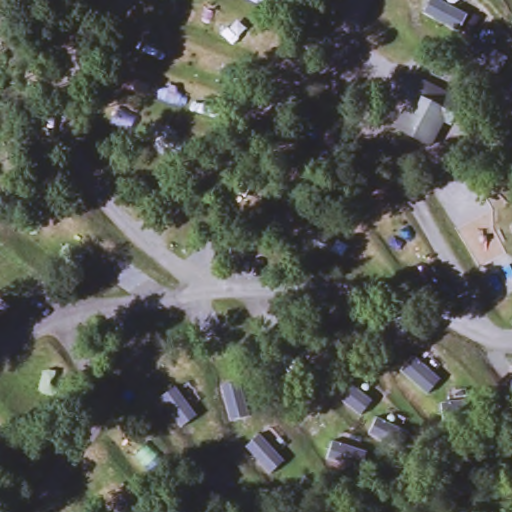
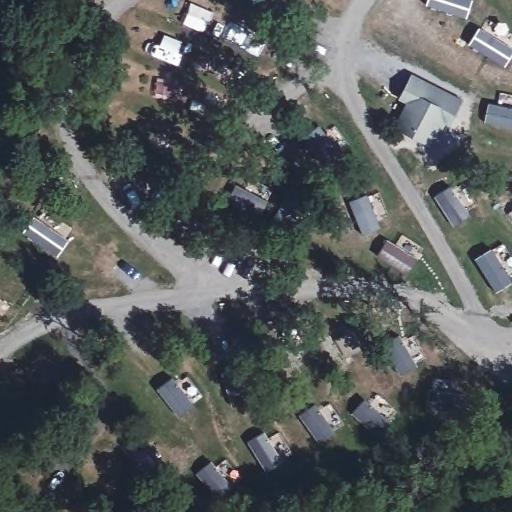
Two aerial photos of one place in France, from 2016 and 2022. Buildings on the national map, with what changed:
unchanged [(267,7),(252,0),(270,0),(267,7)]
unchanged [(420,78),(463,101),(450,127),(443,123),(430,147),(394,128),(420,78)]

